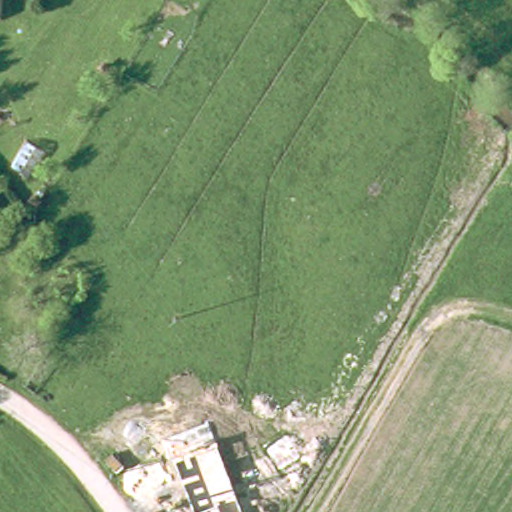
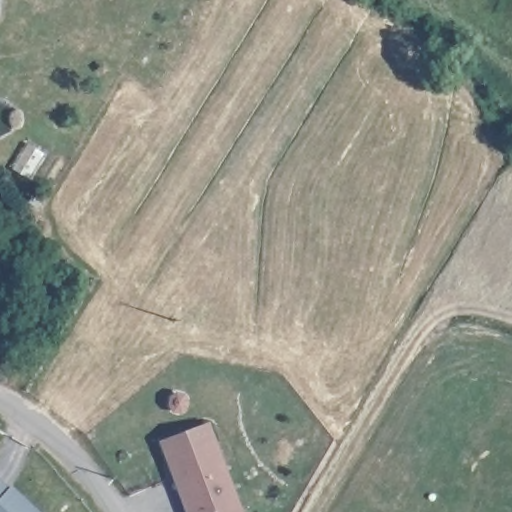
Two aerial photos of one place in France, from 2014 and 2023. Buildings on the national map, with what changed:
new [(243,512),(185,512),(158,441),(208,421),(243,512)]
new [(7,486),(10,484),(39,512),(0,512),(0,479),(7,486)]

